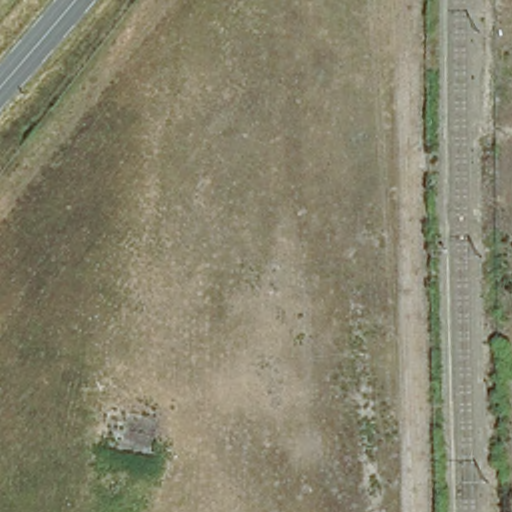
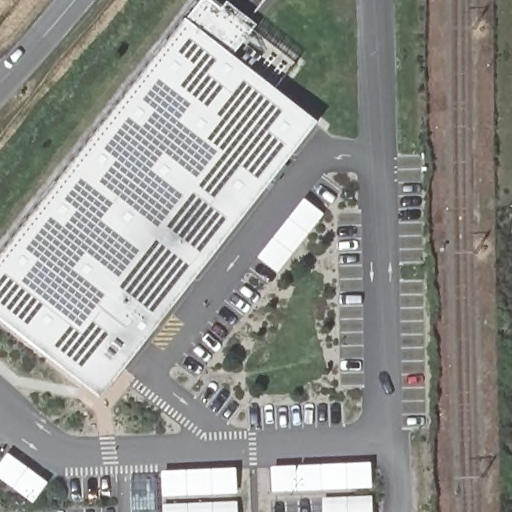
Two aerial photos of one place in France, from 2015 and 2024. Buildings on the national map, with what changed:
new [(209,0),(251,32),(232,57),(316,123),(101,397),(0,318),(0,259),(204,0),(209,0)]

